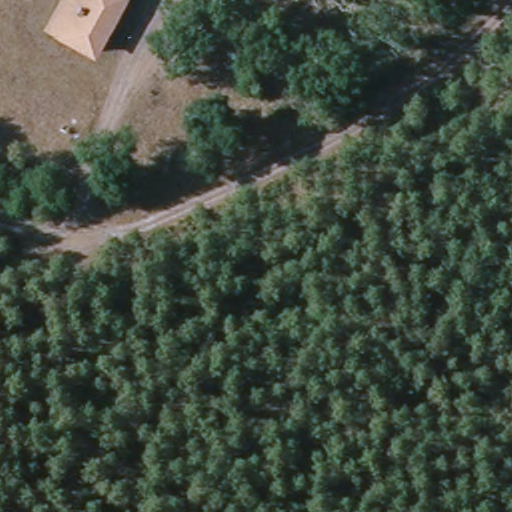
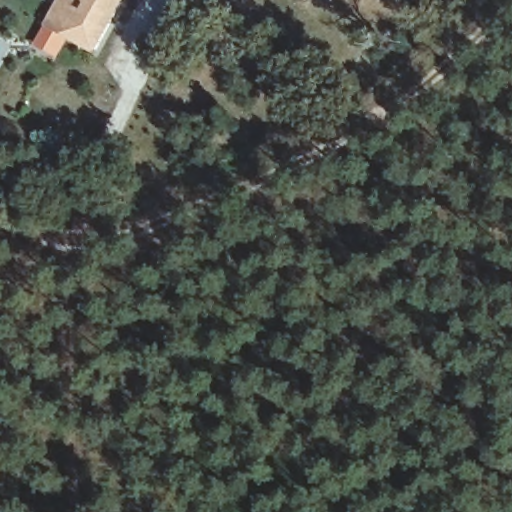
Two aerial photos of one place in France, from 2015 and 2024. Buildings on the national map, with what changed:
unchanged [(48,22),(61,0),(122,0),(95,49),(48,22)]
unchanged [(60,204),(65,186),(88,192),(83,209),(60,204)]

